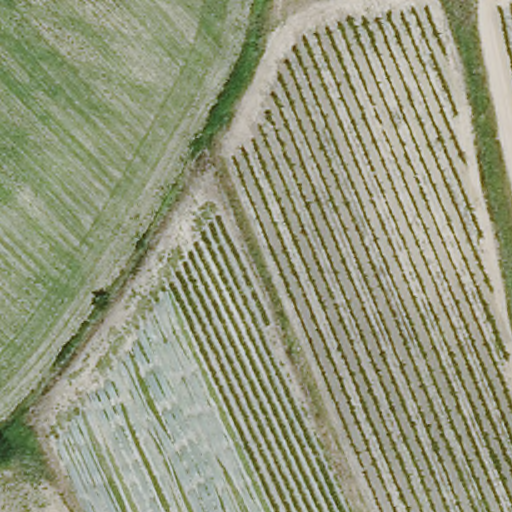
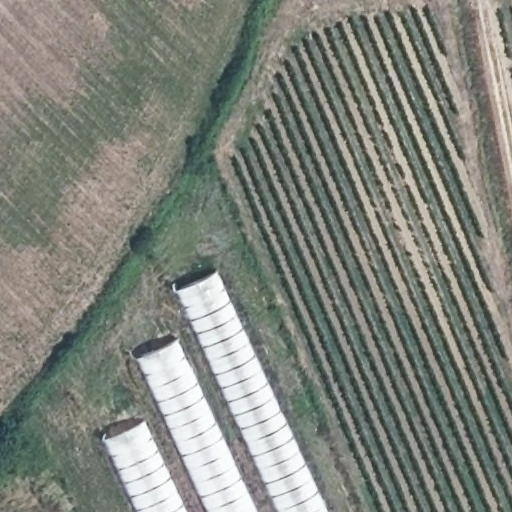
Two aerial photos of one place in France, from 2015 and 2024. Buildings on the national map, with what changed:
new [(214,271),(327,512),(140,512),(105,436),(161,412),(136,356),(197,330),(180,288),(214,271)]

